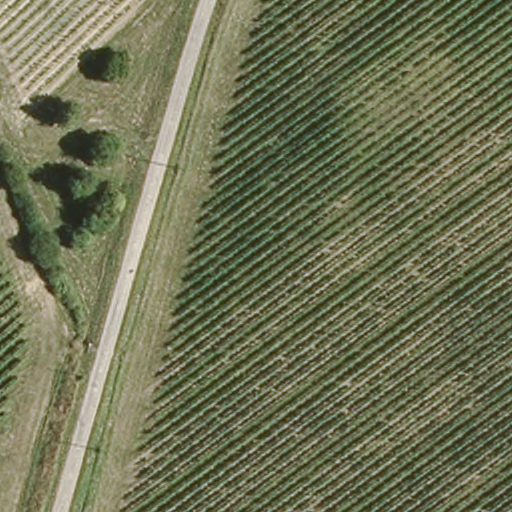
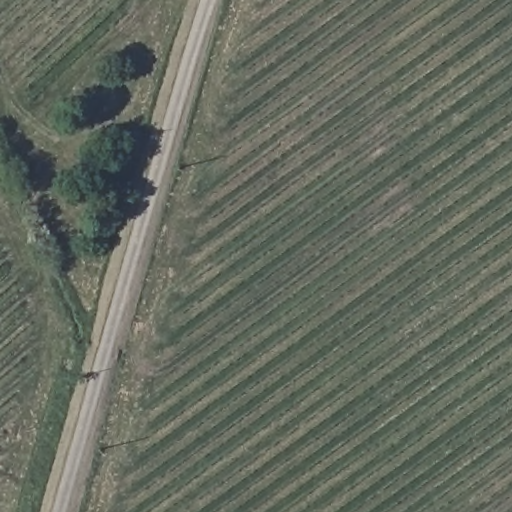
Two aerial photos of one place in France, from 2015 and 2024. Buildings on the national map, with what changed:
[]

